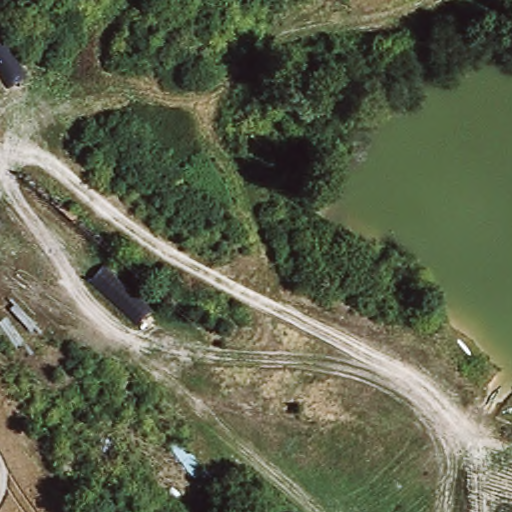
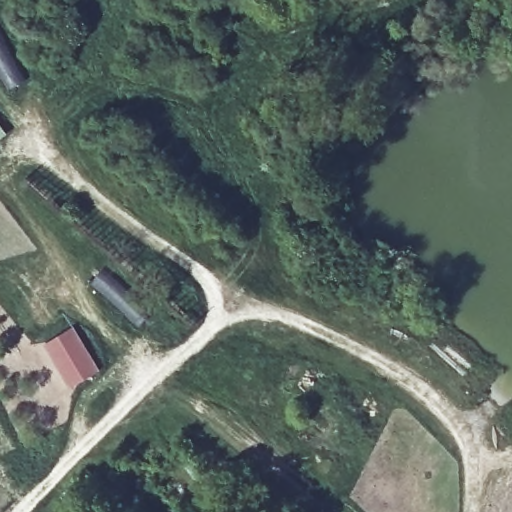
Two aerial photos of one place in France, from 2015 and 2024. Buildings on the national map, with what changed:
unchanged [(10,87),(0,69),(0,25),(30,77),(10,87)]
unchanged [(155,310),(139,326),(93,281),(107,265),(155,310)]
new [(40,347),(67,328),(97,368),(70,388),(40,347)]

